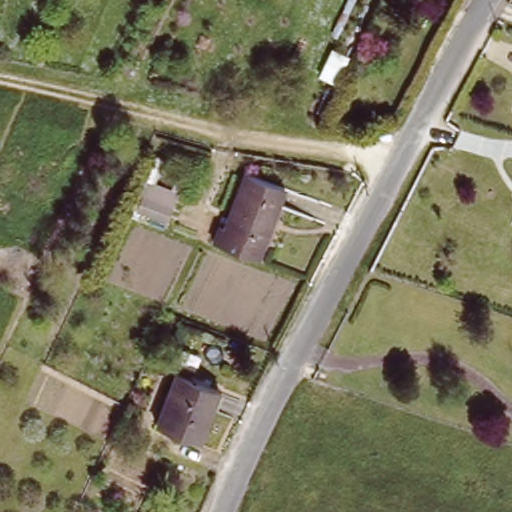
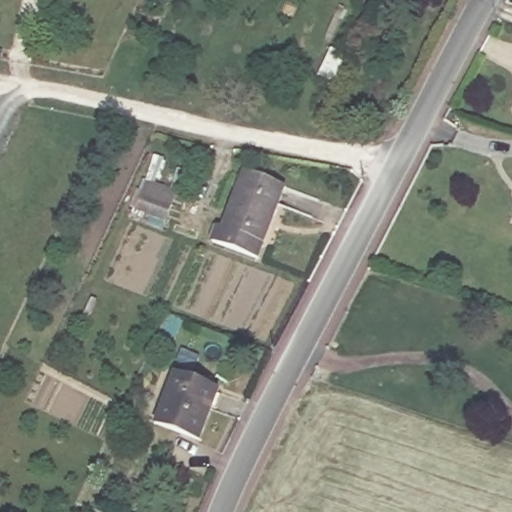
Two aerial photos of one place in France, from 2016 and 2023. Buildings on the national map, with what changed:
unchanged [(290,194),(253,261),(218,240),(226,225),(232,228),(260,176),(290,194)]
unchanged [(152,209),(180,222),(172,237),(145,225),(152,209)]
unchanged [(159,421),(165,410),(180,374),(220,393),(205,427),(198,440),(159,421)]

